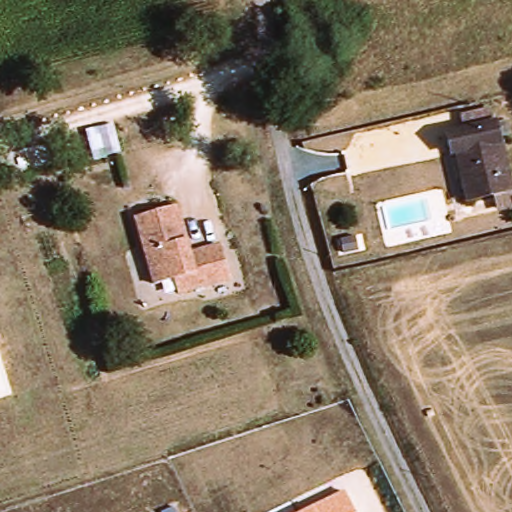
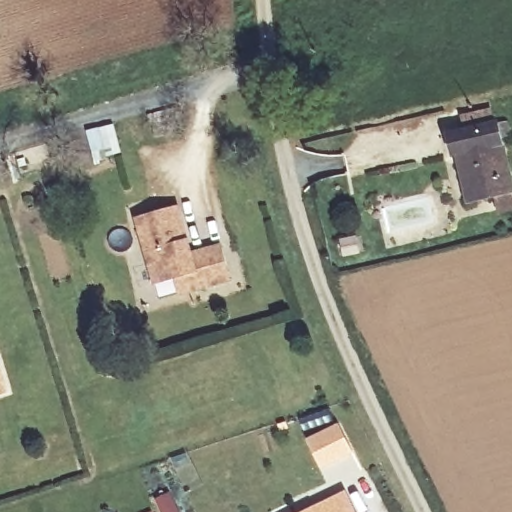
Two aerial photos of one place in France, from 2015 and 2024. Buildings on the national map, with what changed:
unchanged [(496,212),(493,197),(473,202),(466,203),(458,172),(454,156),(450,157),(445,137),(462,133),(459,118),(488,111),(491,126),(504,123),(507,138),(497,140),(510,193),(511,201),(512,201),(512,208),(496,212)]
unchanged [(172,277),(155,283),(135,217),(177,205),(191,251),(219,242),(229,276),(200,286),(177,293),(172,277)]
new [(335,426),(349,453),(317,469),(304,442),(335,426)]
unchanged [(357,512),(304,512),(346,491),(357,512)]

